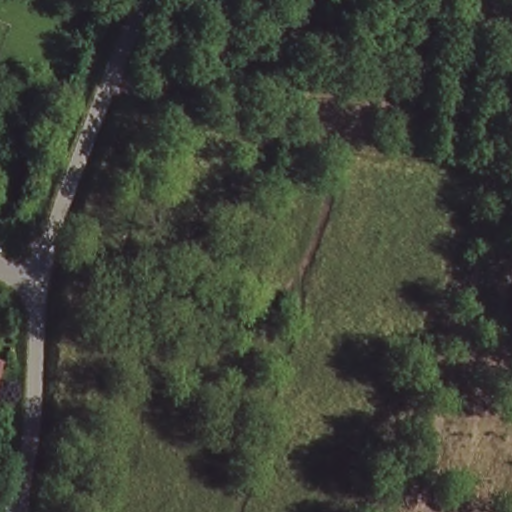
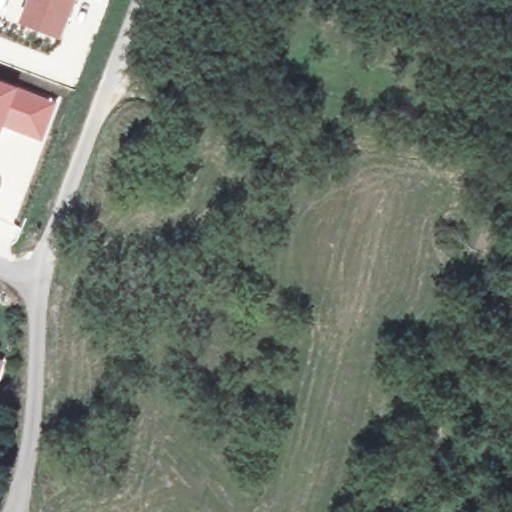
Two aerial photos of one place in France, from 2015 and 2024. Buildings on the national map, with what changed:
new [(17,22),(26,0),(73,0),(60,39),(17,22)]
new [(57,101),(42,142),(3,127),(0,135),(0,79),(57,101)]

